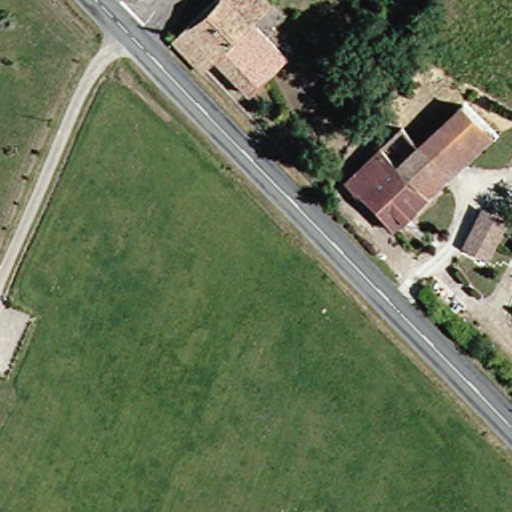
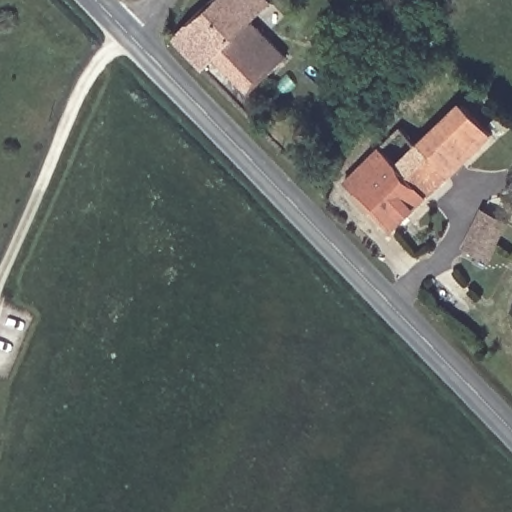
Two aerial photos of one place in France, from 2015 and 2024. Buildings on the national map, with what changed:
unchanged [(240,98),(208,61),(194,71),(167,41),(213,0),(214,0),(243,29),(278,65),(240,98)]
unchanged [(250,0),(262,13),(243,29),(214,0),(250,0)]
unchanged [(456,111),(484,141),(441,178),(413,147),(456,111)]
unchanged [(420,199),(381,233),(335,181),(372,147),(392,168),(420,199)]
unchanged [(441,178),(420,199),(392,168),(413,147),(441,178)]
unchanged [(481,262),(456,249),(475,211),(498,221),(481,262)]

